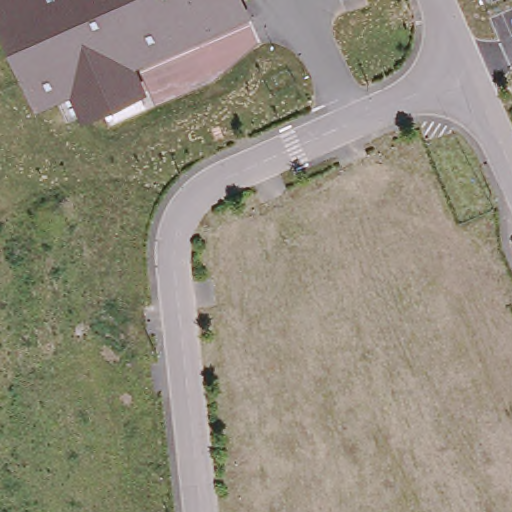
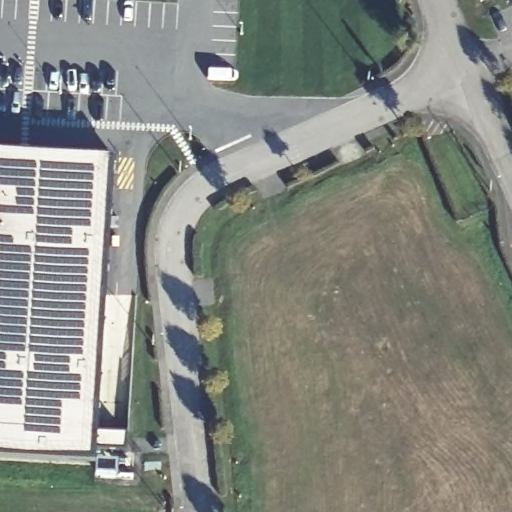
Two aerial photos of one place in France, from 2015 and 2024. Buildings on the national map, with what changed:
demolished [(137,66),(149,93),(82,122),(70,95),(35,111),(0,29),(0,0),(246,0),(252,14),(137,66)]
new [(110,297),(138,297),(137,470),(0,468),(0,154),(113,157),(110,297)]

